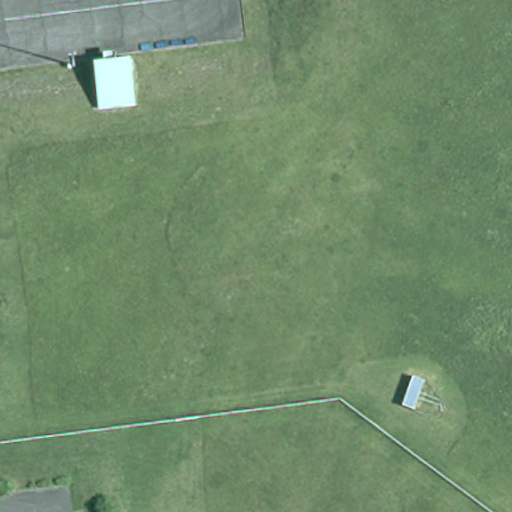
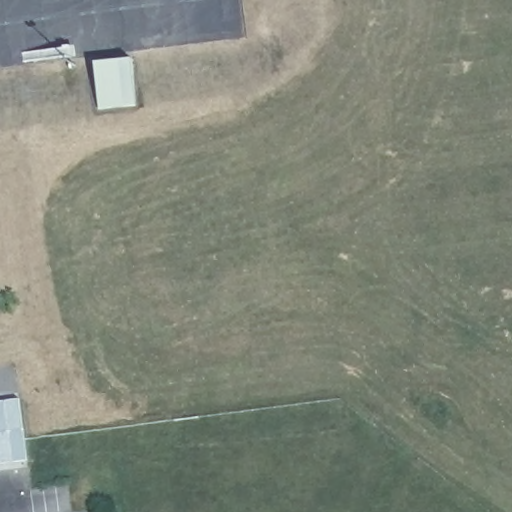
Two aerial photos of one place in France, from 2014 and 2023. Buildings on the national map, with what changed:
unchanged [(138,50),(141,110),(102,114),(96,61),(138,50)]
new [(25,461),(0,464),(0,402),(18,400),(25,461)]

